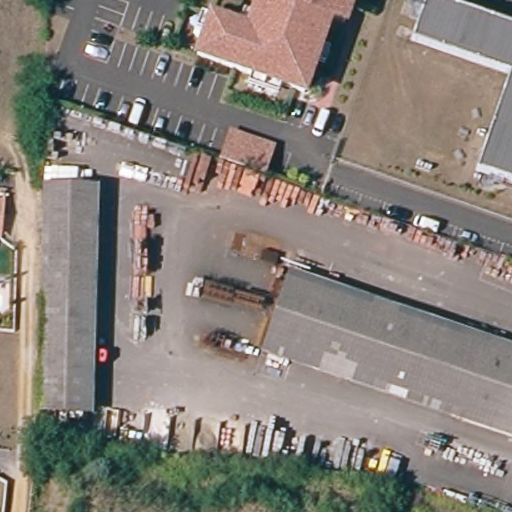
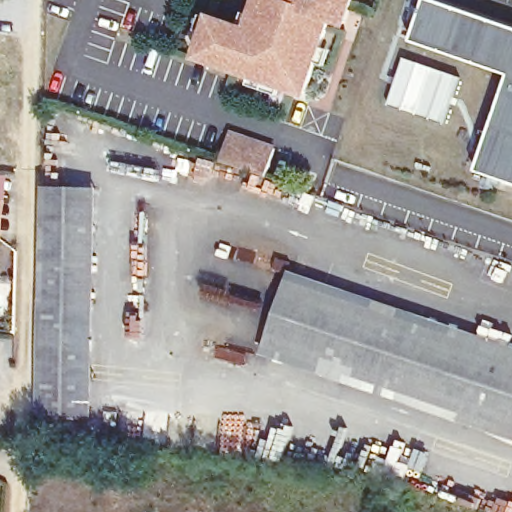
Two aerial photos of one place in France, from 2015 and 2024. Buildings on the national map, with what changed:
unchanged [(307,95),(200,57),(214,18),(251,31),(262,0),(356,0),(352,12),(337,7),(307,95)]
unchanged [(512,19),(512,69),(414,35),(426,0),(457,0),(512,19)]
new [(401,55),(461,76),(442,122),(385,102),(401,55)]
unchanged [(478,165),(506,87),(512,89),(512,177),(478,165)]
unchanged [(266,170),(226,156),(234,132),(274,147),(266,170)]
unchanged [(92,411),(37,410),(47,195),(99,197),(92,411)]
unchanged [(376,385),(377,378),(266,343),(287,276),(487,339),(462,412),(376,385)]
unchanged [(487,339),(487,335),(512,344),(512,428),(462,412),(487,339)]

